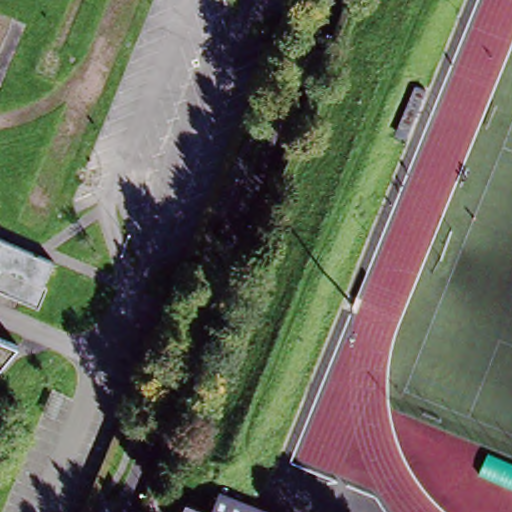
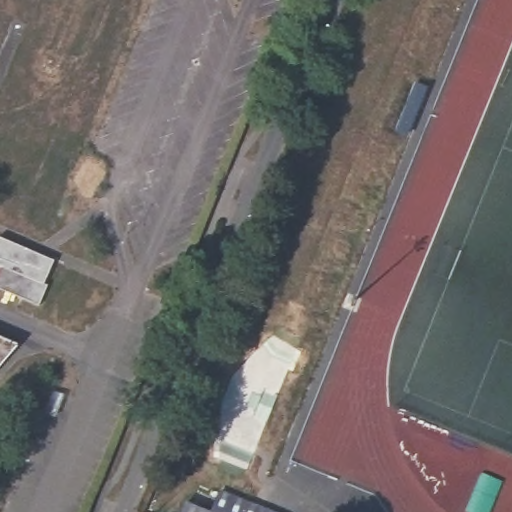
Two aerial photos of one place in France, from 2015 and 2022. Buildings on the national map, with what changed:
unchanged [(420,82),(431,86),(412,132),(400,128),(420,82)]
unchanged [(30,312),(0,299),(0,247),(50,268),(30,312)]
unchanged [(0,366),(0,336),(15,342),(0,366)]
unchanged [(0,371),(0,372),(0,366),(15,342),(20,344),(0,371)]
unchanged [(208,509),(216,488),(269,509),(276,512),(179,512),(184,500),(208,509)]

